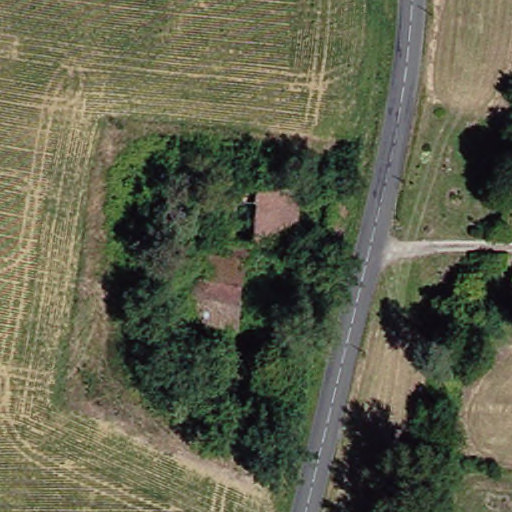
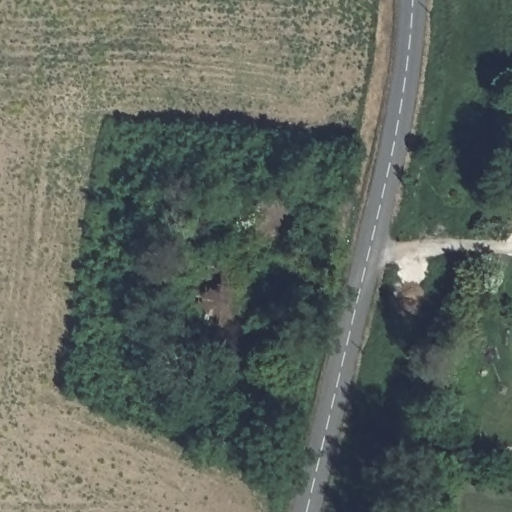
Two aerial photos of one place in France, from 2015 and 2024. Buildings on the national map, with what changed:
unchanged [(315,193),(305,248),(266,243),(252,293),(196,285),(204,238),(239,241),(246,202),(283,205),(284,189),(315,193)]
unchanged [(327,248),(337,193),(355,193),(343,252),(327,248)]
unchanged [(252,293),(246,322),(192,312),(196,285),(252,293)]

